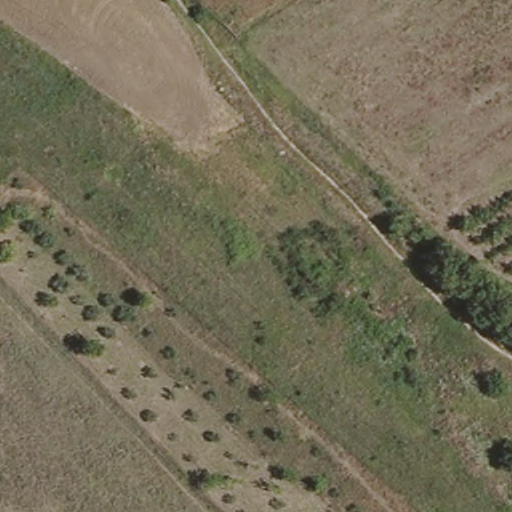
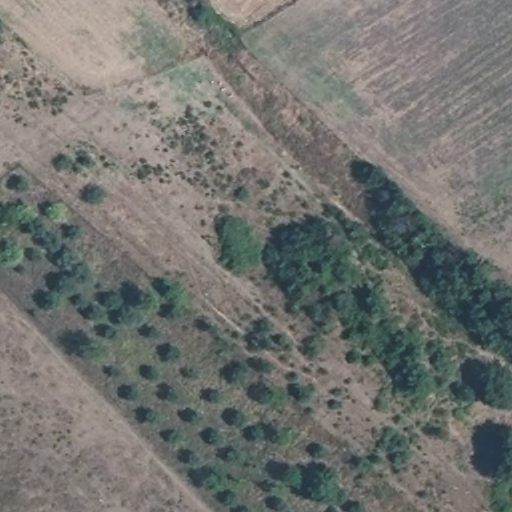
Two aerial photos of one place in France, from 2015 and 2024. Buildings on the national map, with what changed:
[]

